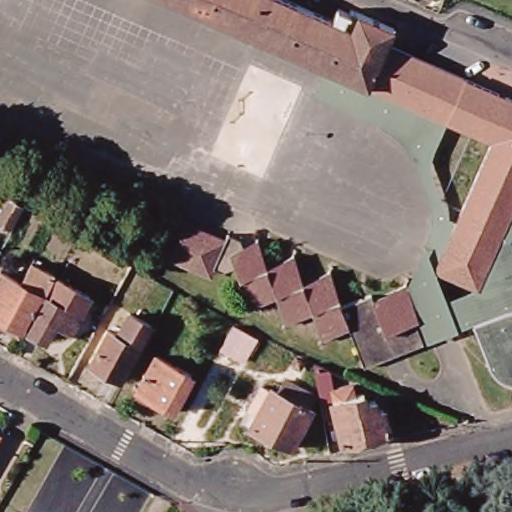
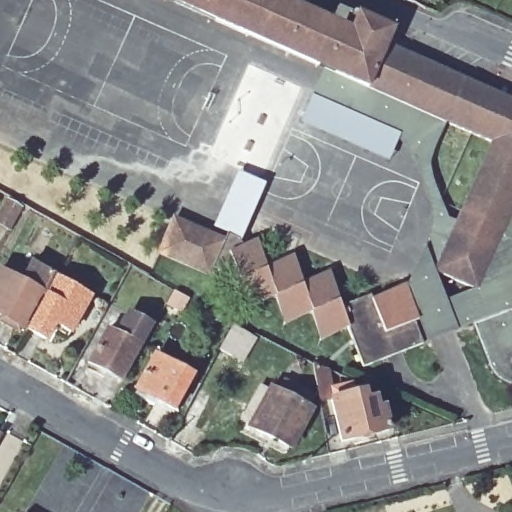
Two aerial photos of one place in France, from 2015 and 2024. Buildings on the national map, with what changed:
unchanged [(502,380),(490,367),(471,323),(461,327),(450,297),(477,289),(435,270),(492,141),(171,0),(284,0),(343,26),(350,10),(393,29),(386,45),(512,101),(512,383),(502,380)]
demolished [(393,0),(403,0),(402,4),(393,0)]
new [(312,94),(402,134),(388,162),(299,121),(312,94)]
unchanged [(0,224),(0,213),(8,200),(21,206),(9,229),(0,224)]
unchanged [(238,244),(242,242),(254,237),(265,263),(290,253),(301,279),(327,269),(340,302),(370,290),(372,296),(405,283),(417,315),(414,317),(423,338),(363,362),(347,322),(322,332),(312,307),(286,317),(276,291),(250,300),(234,262),(221,266),(212,263),(209,270),(159,248),(174,214),(236,241),(238,244)]
unchanged [(0,323),(0,318),(1,315),(0,315),(0,272),(20,283),(31,263),(54,275),(43,296),(38,295),(17,332),(0,323)]
unchanged [(51,328),(45,340),(28,330),(56,278),(90,296),(70,332),(68,337),(51,328)]
unchanged [(110,385),(96,377),(94,383),(76,373),(79,367),(96,335),(106,340),(118,318),(141,330),(110,385)]
unchanged [(256,338),(243,360),(232,355),(231,356),(219,350),(232,325),(256,338)]
unchanged [(172,408),(136,389),(154,355),(190,375),(172,408)]
unchanged [(387,435),(341,446),(331,404),(319,407),(311,368),(327,376),(332,395),(350,390),(353,400),(363,398),(365,406),(374,404),(377,415),(382,413),(387,435)]
unchanged [(290,452),(250,431),(256,420),(248,416),(260,392),(268,396),(269,395),(276,398),(282,385),(291,389),(314,400),(307,413),(309,415),(290,452)]

